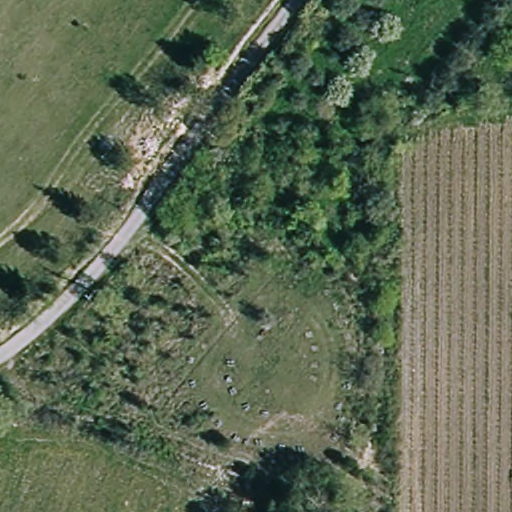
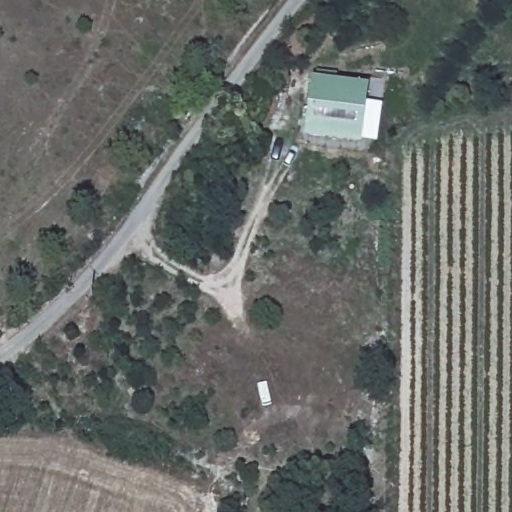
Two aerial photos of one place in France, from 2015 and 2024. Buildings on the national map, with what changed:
new [(370,85),(362,145),(305,137),(314,77),(370,85)]

